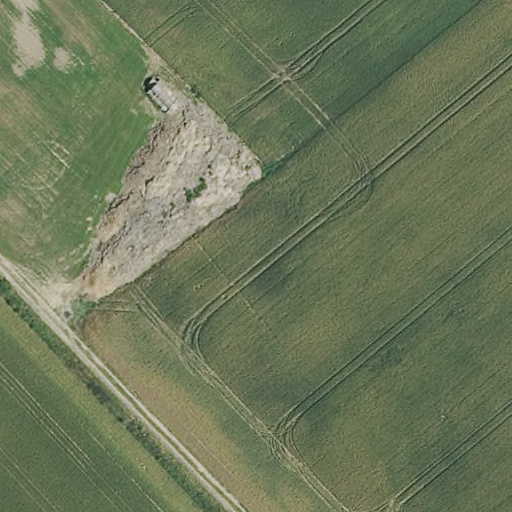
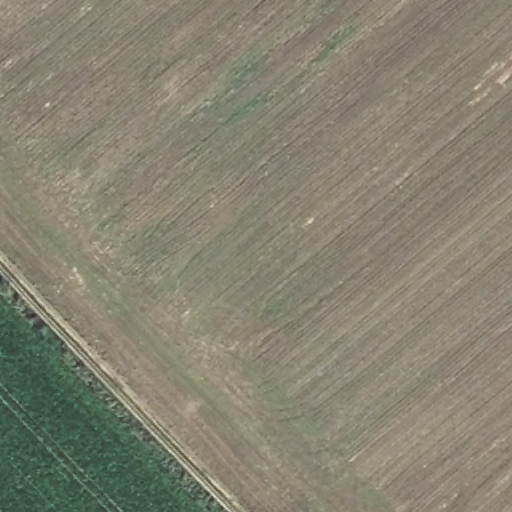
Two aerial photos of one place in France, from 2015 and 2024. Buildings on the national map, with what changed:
[]

